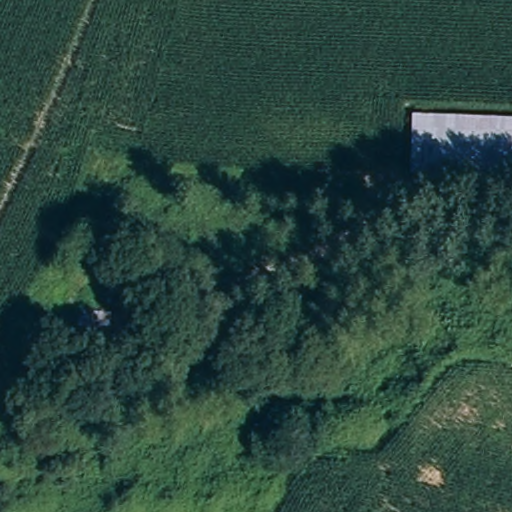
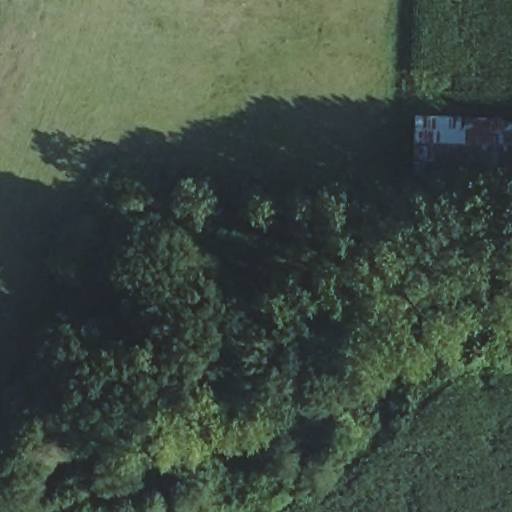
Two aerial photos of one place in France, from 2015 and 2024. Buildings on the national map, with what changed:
unchanged [(512,122),(512,182),(406,178),(412,119),(512,122)]
unchanged [(112,314),(111,346),(76,341),(80,311),(112,314)]

